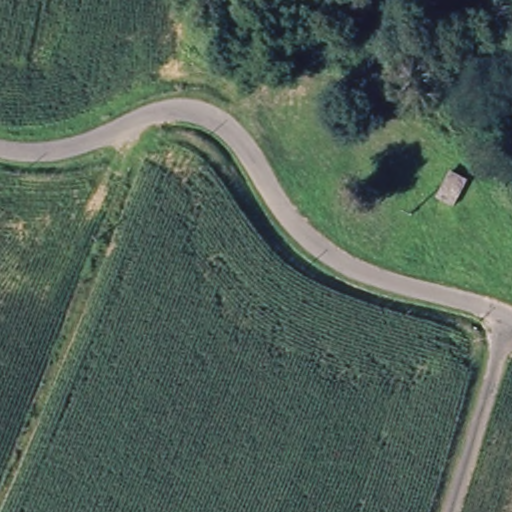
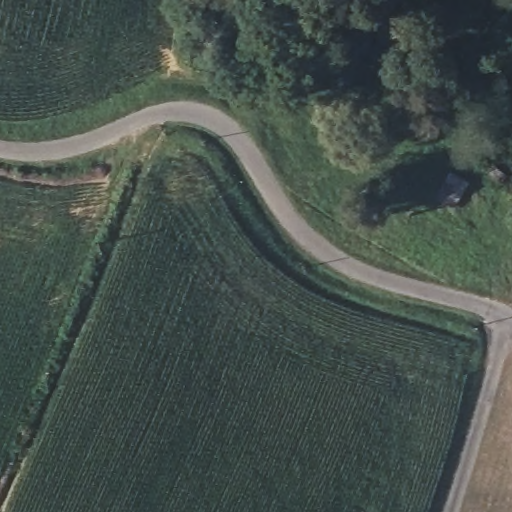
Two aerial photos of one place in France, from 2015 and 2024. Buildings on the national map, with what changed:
unchanged [(464,200),(443,200),(443,181),(464,182),(464,200)]

